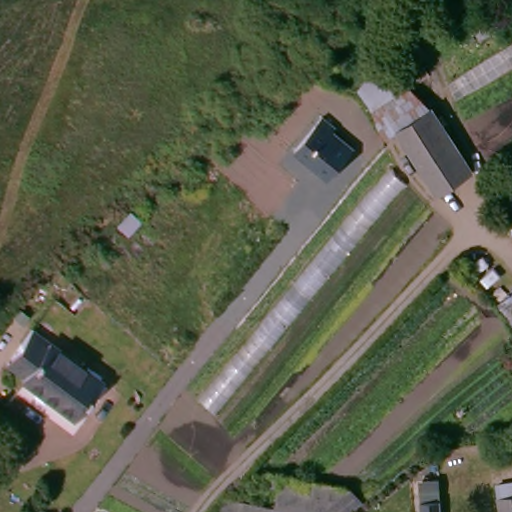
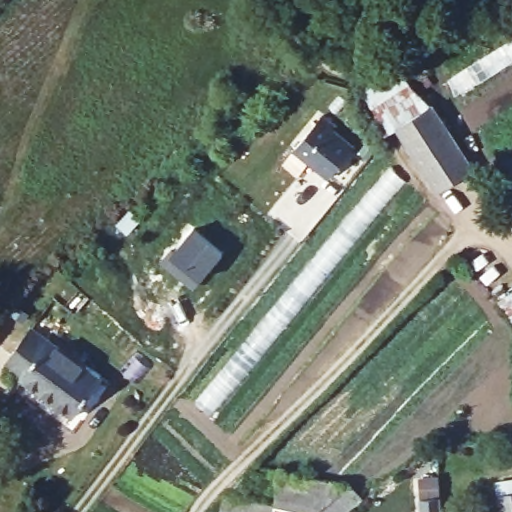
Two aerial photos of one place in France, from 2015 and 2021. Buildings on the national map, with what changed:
unchanged [(438,199),(396,131),(382,137),(354,96),(388,62),(411,91),(426,108),(474,177),(438,199)]
unchanged [(328,180),(295,151),(320,121),(354,149),(328,180)]
unchanged [(211,423),(195,408),(386,173),(404,191),(211,423)]
new [(171,253),(174,256),(194,232),(223,258),(193,291),(162,263),(171,253)]
unchanged [(74,426),(66,419),(18,383),(23,377),(6,363),(34,328),(99,376),(106,383),(74,426)]
unchanged [(279,479),(348,492),(365,512),(272,512),(279,479)]
unchanged [(494,496),(512,493),(512,512),(496,512),(494,496)]
unchanged [(269,512),(220,512),(222,503),(244,507),(269,512)]
unchanged [(450,509),(451,509),(451,512),(438,512),(450,509)]

